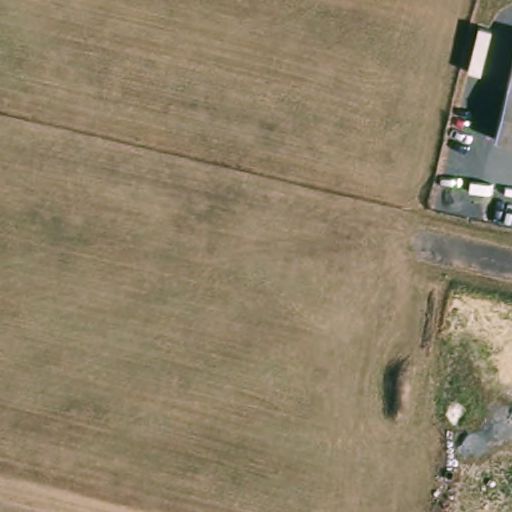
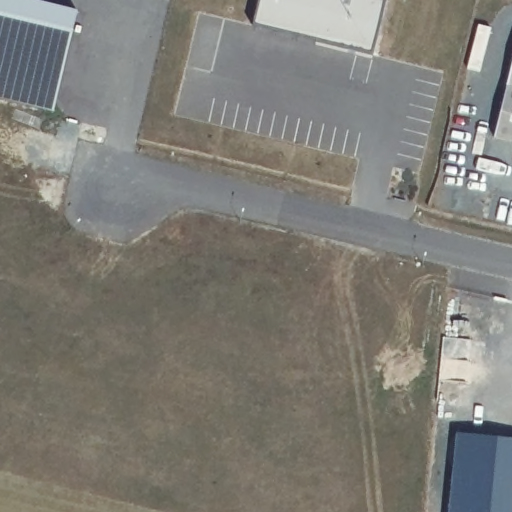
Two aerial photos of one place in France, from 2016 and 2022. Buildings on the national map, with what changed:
new [(0,0),(30,0),(77,11),(54,113),(0,101),(0,0)]
new [(254,25),(260,0),(385,0),(372,55),(254,25)]
unchanged [(500,86),(512,39),(512,89),(500,86)]
unchanged [(512,89),(512,145),(488,139),(500,86),(512,89)]
new [(456,434),(512,440),(512,512),(450,512),(456,434)]

